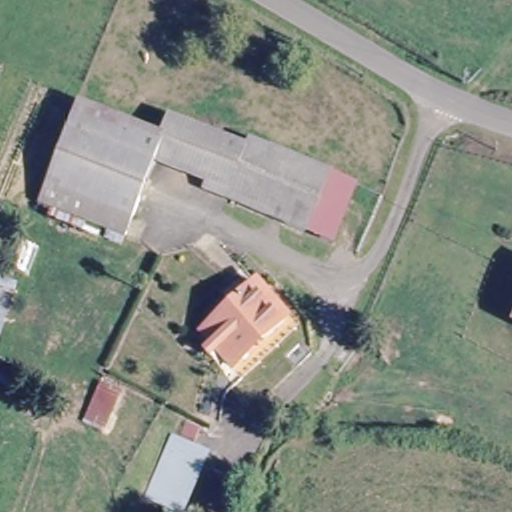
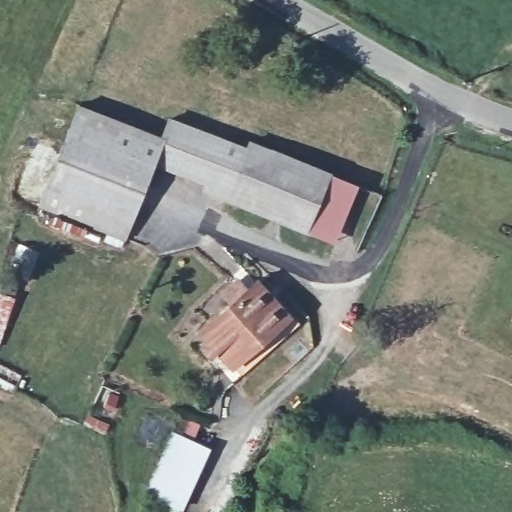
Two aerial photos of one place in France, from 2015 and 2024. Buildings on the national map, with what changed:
unchanged [(134,248),(97,235),(99,224),(100,220),(58,209),(45,203),(73,119),(119,135),(125,124),(157,137),(148,164),(127,232),(138,234),(134,248)]
unchanged [(219,141),(217,148),(207,185),(148,164),(157,137),(162,123),(185,130),(219,141)]
unchanged [(297,177),(280,226),(218,205),(205,199),(207,185),(217,148),(248,159),(297,177)]
unchanged [(297,177),(330,186),(313,239),(280,226),(297,177)]
unchanged [(11,299),(0,328),(0,279),(17,285),(11,299)]
unchanged [(195,334),(220,310),(211,300),(222,290),(232,299),(241,289),(277,320),(229,367),(195,334)]
unchanged [(229,367),(277,320),(284,328),(288,332),(242,380),(229,367)]
unchanged [(123,390),(105,434),(79,424),(97,384),(123,390)]
unchanged [(183,511),(146,499),(164,436),(201,447),(183,511)]

